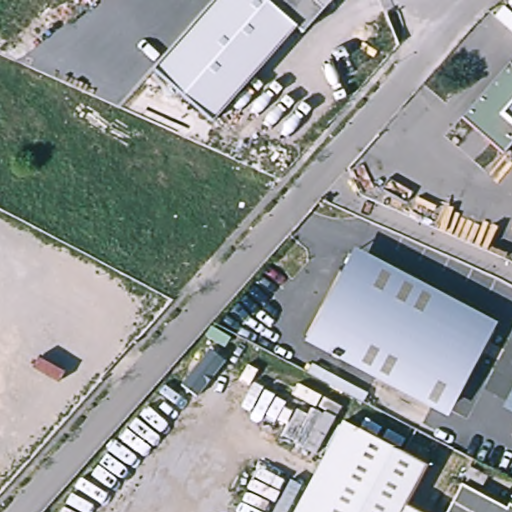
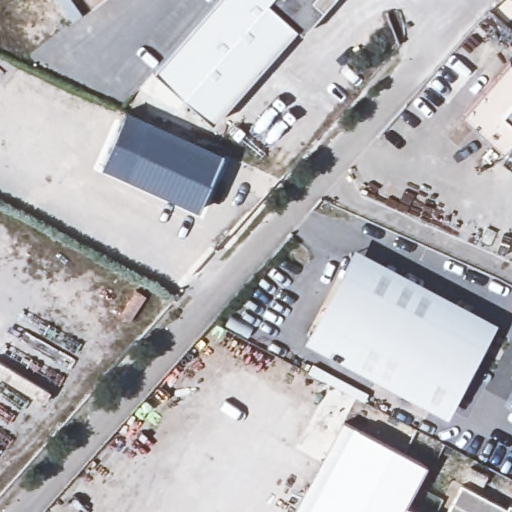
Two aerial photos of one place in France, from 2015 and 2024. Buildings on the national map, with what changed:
unchanged [(87,0),(99,0),(92,6),(87,0)]
unchanged [(218,0),(335,0),(306,32),(300,26),(216,121),(157,69),(218,0)]
unchanged [(461,115),(509,61),(512,64),(512,141),(503,152),(461,115)]
new [(103,167),(127,110),(225,154),(200,212),(103,167)]
unchanged [(325,350),(306,340),(354,249),(374,259),(371,264),(328,345),(325,350)]
unchanged [(371,264),(490,327),(447,408),(328,345),(371,264)]
unchanged [(343,421),(359,430),(314,512),(294,512),(343,421)]
unchanged [(428,466),(407,506),(419,512),(314,512),(359,430),(428,466)]
unchanged [(463,484),(512,510),(512,512),(448,512),(463,484)]

